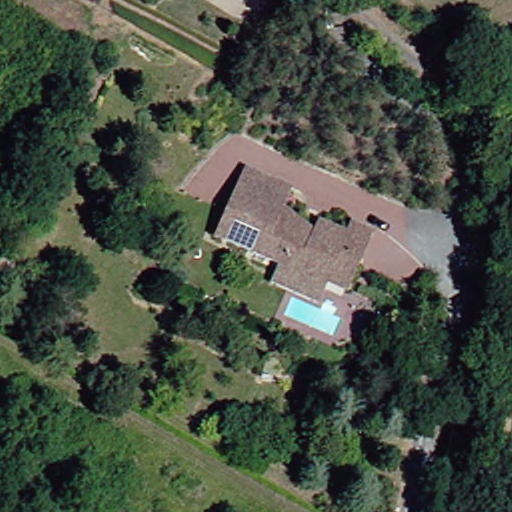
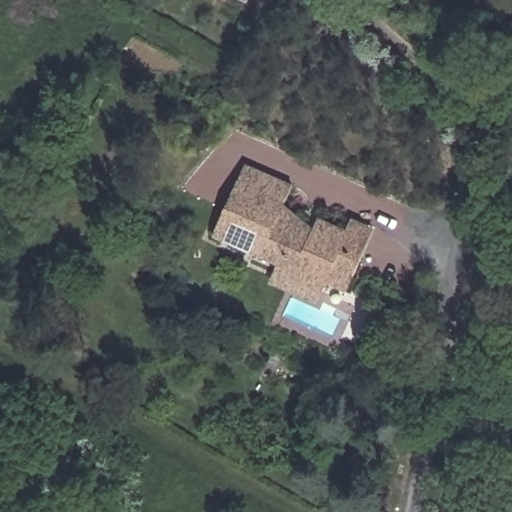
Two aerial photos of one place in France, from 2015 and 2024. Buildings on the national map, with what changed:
unchanged [(363,229),(349,262),(336,291),(317,282),(307,303),(261,283),(269,265),(205,237),(235,165),(282,185),(273,205),(304,230),(309,219),(337,231),(342,220),(363,229)]

